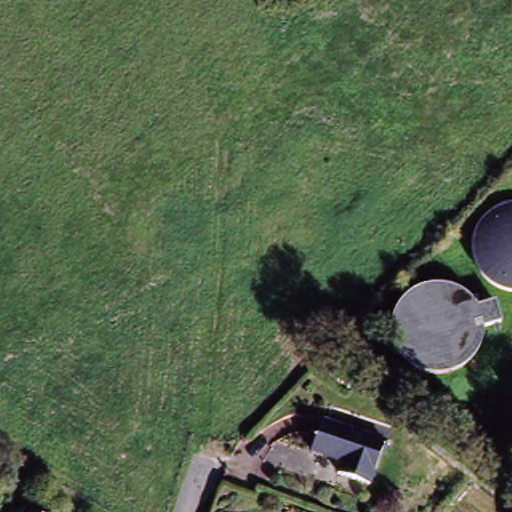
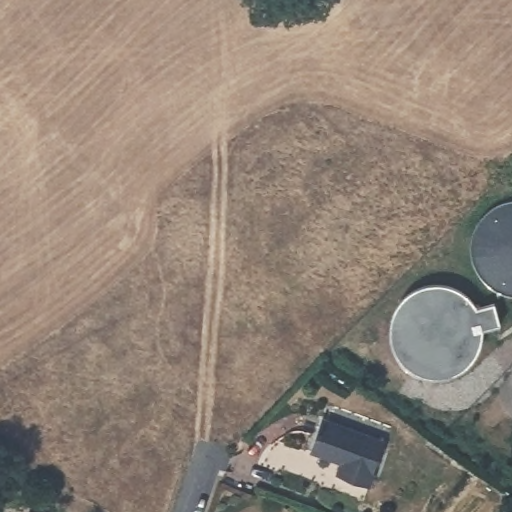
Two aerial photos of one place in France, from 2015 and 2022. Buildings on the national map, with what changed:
unchanged [(380,447),(365,492),(332,481),(336,468),(305,458),(317,425),(380,447)]

